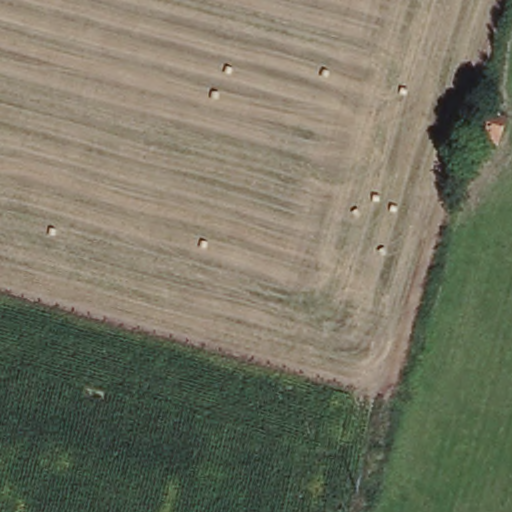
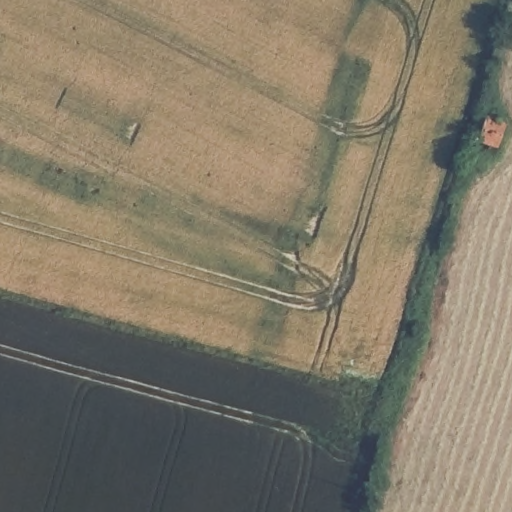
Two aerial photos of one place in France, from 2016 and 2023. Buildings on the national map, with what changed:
unchanged [(503,122),(498,150),(470,141),(476,116),(503,122)]

